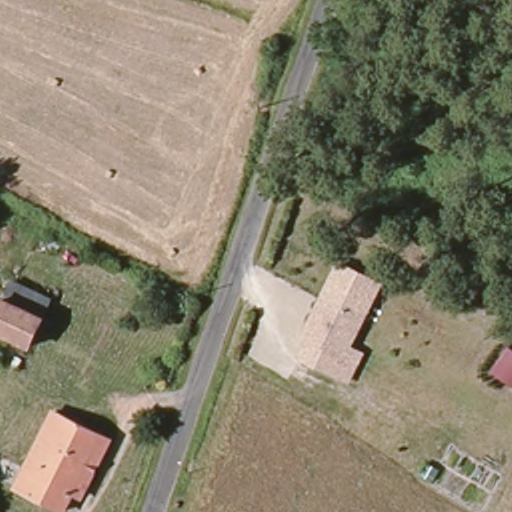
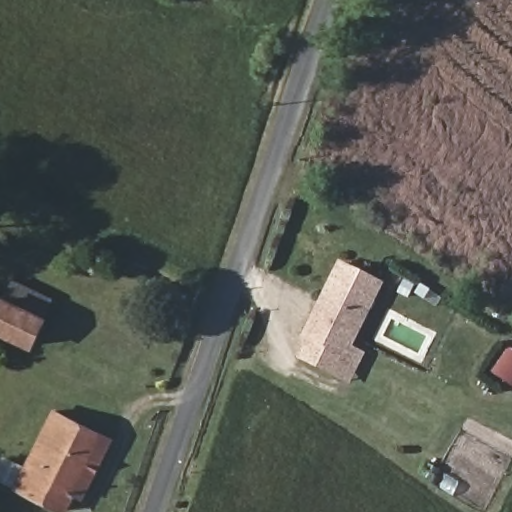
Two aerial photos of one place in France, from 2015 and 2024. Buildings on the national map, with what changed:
unchanged [(350,379),(336,372),(301,354),(310,334),(305,332),(339,259),(380,280),(350,344),(362,351),(350,379)]
unchanged [(0,327),(0,310),(10,295),(53,315),(36,345),(0,327)]
unchanged [(87,496),(76,490),(67,508),(25,488),(57,416),(111,444),(87,496)]

